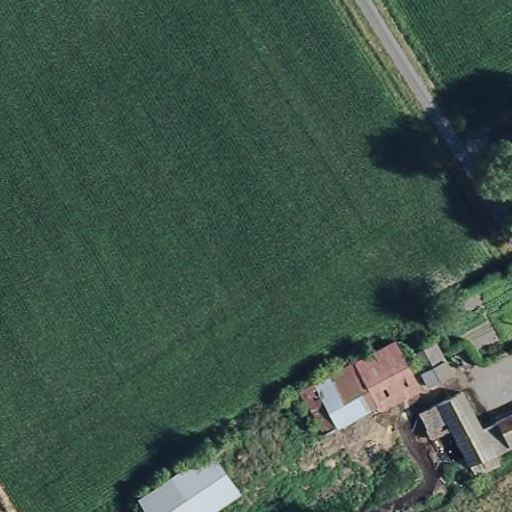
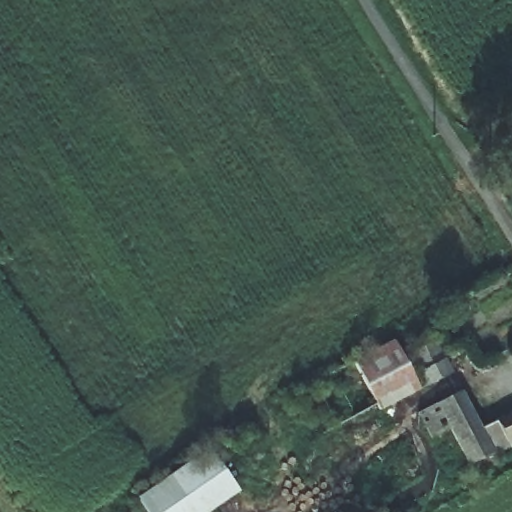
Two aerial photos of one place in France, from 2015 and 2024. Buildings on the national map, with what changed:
unchanged [(449,372),(426,386),(407,353),(430,338),(449,372)]
unchanged [(377,356),(397,393),(344,427),(322,390),(377,356)]
unchanged [(502,439),(494,443),(504,462),(462,485),(456,477),(447,482),(442,473),(451,468),(438,446),(420,456),(407,431),(475,392),(494,426),(502,439)]
unchanged [(512,441),(505,445),(502,439),(494,426),(512,416),(512,441)]
unchanged [(143,512),(137,501),(209,452),(240,495),(214,512),(143,512)]

